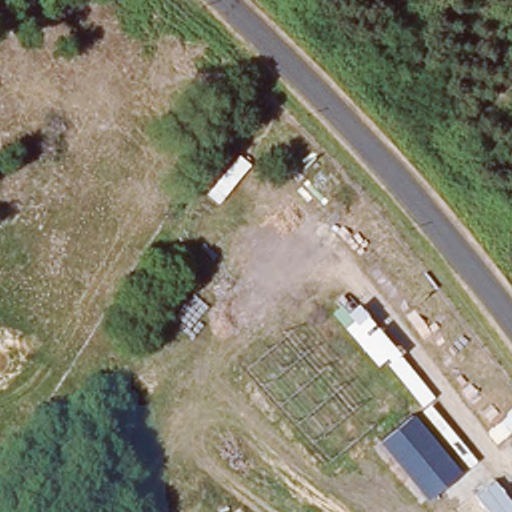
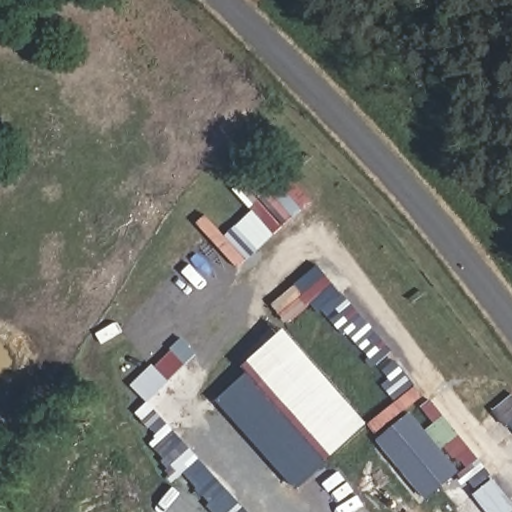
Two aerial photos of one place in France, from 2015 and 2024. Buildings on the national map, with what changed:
new [(328,464),(294,491),(219,404),(250,377),(244,367),(285,329),(369,425),(328,464)]
new [(426,502),(377,442),(411,414),(460,473),(426,502)]
unchanged [(494,479),(512,502),(512,512),(487,512),(474,494),(494,479)]

